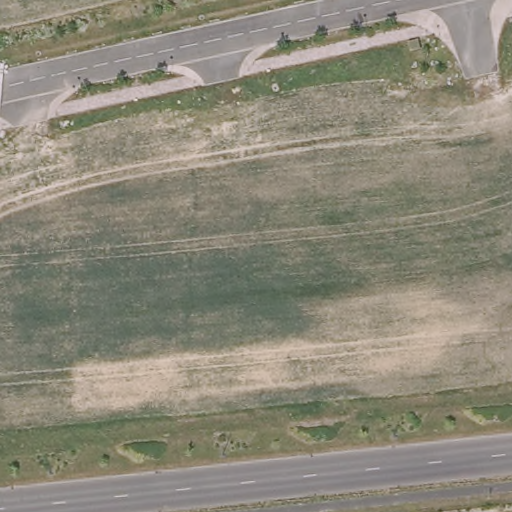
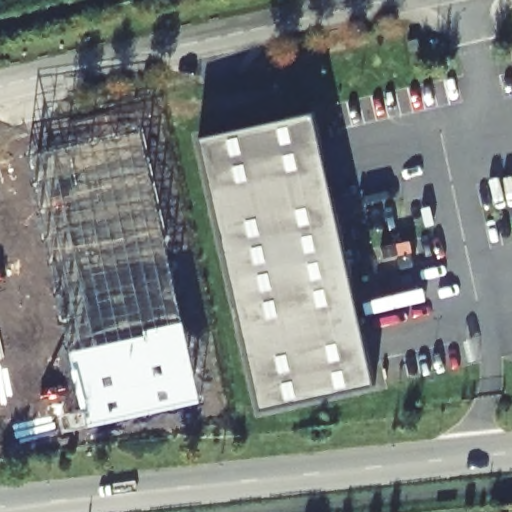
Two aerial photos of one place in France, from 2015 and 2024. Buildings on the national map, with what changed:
new [(377,383),(260,407),(198,136),(310,112),(377,383)]
new [(71,350),(27,155),(141,129),(201,401),(86,427),(71,350)]

